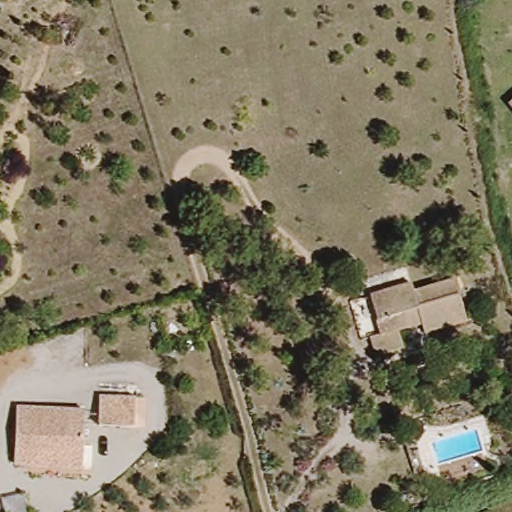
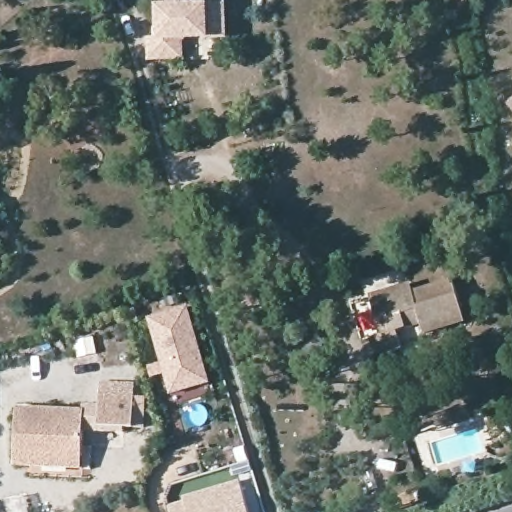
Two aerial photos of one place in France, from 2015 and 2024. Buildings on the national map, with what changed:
new [(229,7),(230,37),(189,39),(187,43),(187,59),(156,60),(155,39),(165,39),(165,10),(155,10),(154,0),(185,0),(185,8),(229,7)]
unchanged [(511,101),(512,100),(512,103),(511,101)]
unchanged [(413,287),(453,275),(465,317),(424,330),(421,318),(398,327),(402,344),(375,352),(370,334),(381,330),(370,291),(411,279),(413,287)]
new [(170,394),(148,317),(190,307),(212,385),(170,394)]
unchanged [(144,424),(133,423),(99,422),(101,392),(135,393),(146,393),(144,424)]
unchanged [(33,466),(16,465),(18,408),(84,411),(82,457),(82,468),(33,466)]
new [(169,506),(185,502),(184,497),(241,481),(249,512),(171,512),(169,506)]

